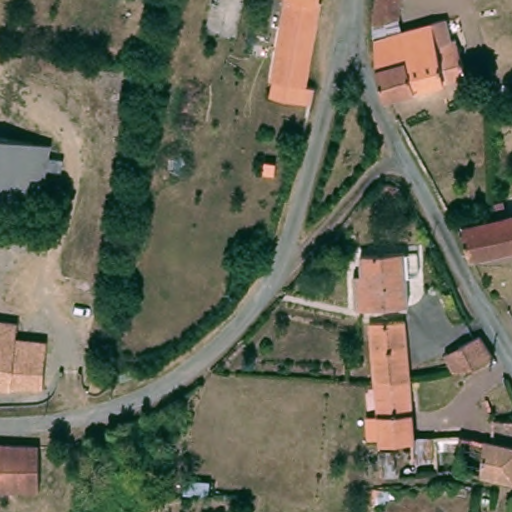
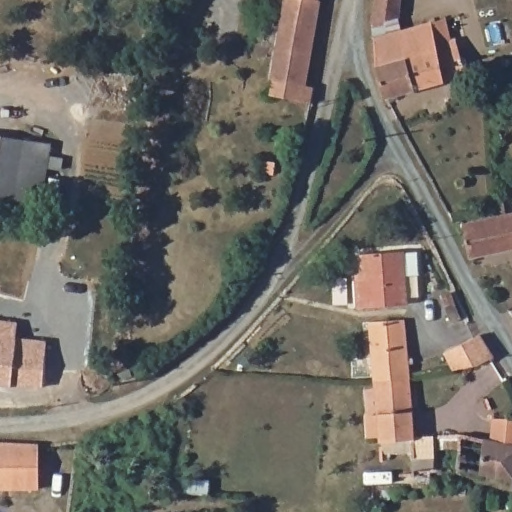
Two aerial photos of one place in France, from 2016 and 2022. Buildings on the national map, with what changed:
unchanged [(304,84),(316,86),(308,121),(270,114),(282,51),(278,50),(287,0),(318,0),(304,84)]
unchanged [(399,13),(373,18),(375,0),(401,0),(399,13)]
unchanged [(444,15),(451,36),(455,34),(466,71),(384,93),(375,59),(373,32),(444,15)]
unchanged [(45,158),(57,160),(56,173),(43,171),(37,208),(0,202),(0,140),(47,147),(45,158)]
unchanged [(512,205),(512,253),(472,263),(465,230),(492,224),(491,207),(512,205)]
unchanged [(363,273),(362,252),(407,247),(407,249),(421,248),(423,271),(410,272),(412,301),(366,304),(365,304),(358,304),(358,302),(356,273),(363,273)]
unchanged [(452,289),(460,305),(447,311),(439,295),(452,289)]
unchanged [(19,343),(49,347),(42,390),(0,385),(0,321),(22,324),(19,343)]
unchanged [(404,321),(410,380),(373,382),(367,324),(404,321)]
unchanged [(481,334),(496,357),(478,367),(455,372),(447,353),(481,334)]
unchanged [(410,380),(413,423),(415,430),(416,442),(381,446),(373,382),(410,380)]
unchanged [(512,443),(512,477),(483,473),(458,468),(463,432),(490,438),(495,439),(512,443)]
unchanged [(38,480),(0,479),(0,436),(40,437),(38,480)]

